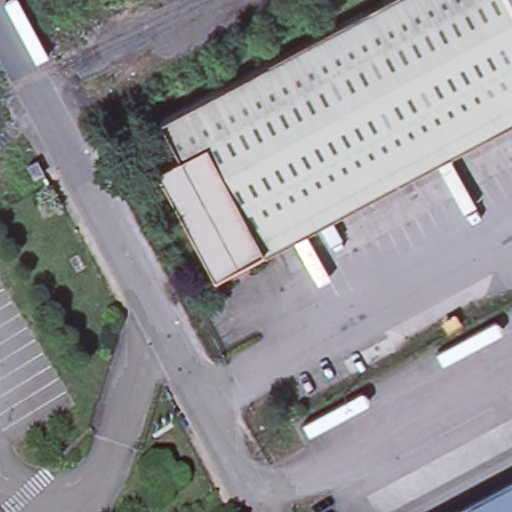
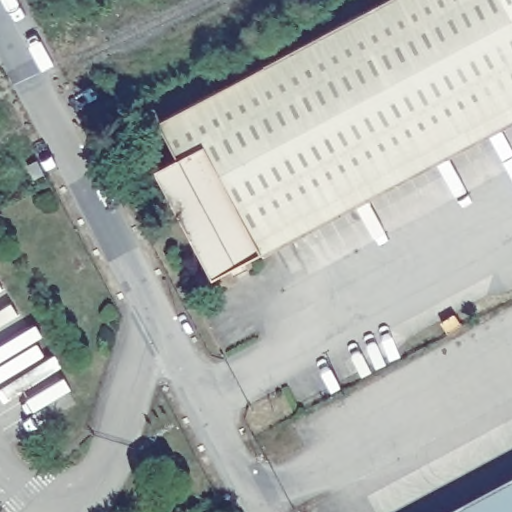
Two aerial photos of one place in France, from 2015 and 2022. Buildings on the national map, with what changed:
unchanged [(230,275),(215,283),(157,173),(178,162),(160,126),(394,0),(502,0),(512,19),(512,109),(258,246),(264,257),(246,266),(250,271),(232,279),(230,275)]
unchanged [(512,0),(512,19),(502,0),(512,0)]
unchanged [(264,257),(258,246),(512,109),(512,128),(267,261),(264,257)]
unchanged [(456,318),(462,328),(448,335),(442,325),(456,318)]
unchanged [(512,494),(512,512),(479,512),(512,494)]

